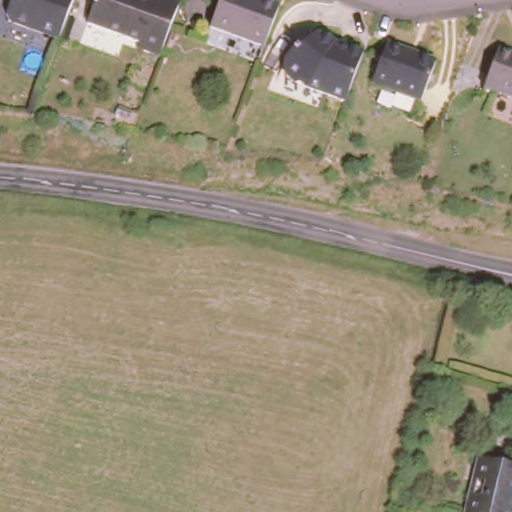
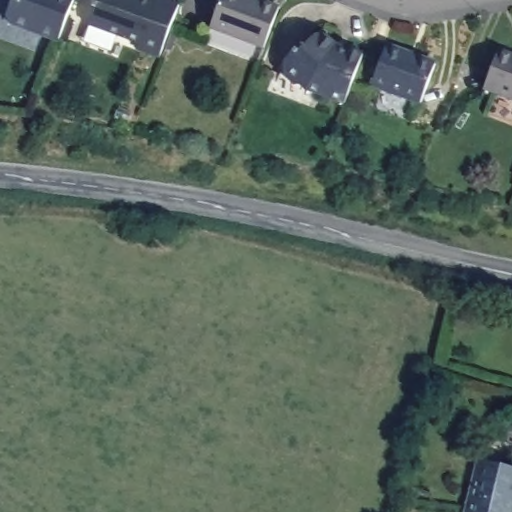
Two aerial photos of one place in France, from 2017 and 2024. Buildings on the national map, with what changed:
unchanged [(12,0),(72,0),(73,2),(57,42),(8,24),(5,17),(12,0)]
unchanged [(139,40),(86,20),(93,0),(177,0),(178,0),(158,53),(137,45),(139,40)]
unchanged [(213,0),(264,0),(273,4),(258,45),(204,25),(213,0)]
unchanged [(344,100),(305,85),(300,80),(295,80),(288,66),(285,55),(302,50),(306,52),(316,30),(325,30),(333,40),(333,46),(345,50),(347,45),(362,51),(344,100)]
unchanged [(440,60),(425,100),(376,81),(391,41),(440,60)]
unchanged [(482,86),(497,47),(512,52),(512,97),(482,86)]
unchanged [(479,455),(512,463),(512,496),(511,500),(512,500),(512,512),(465,512),(479,455)]

